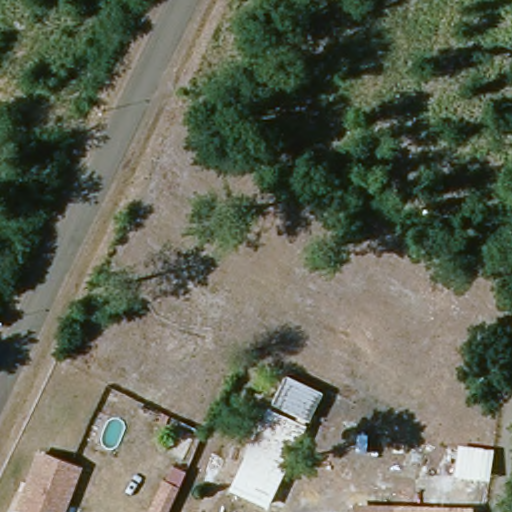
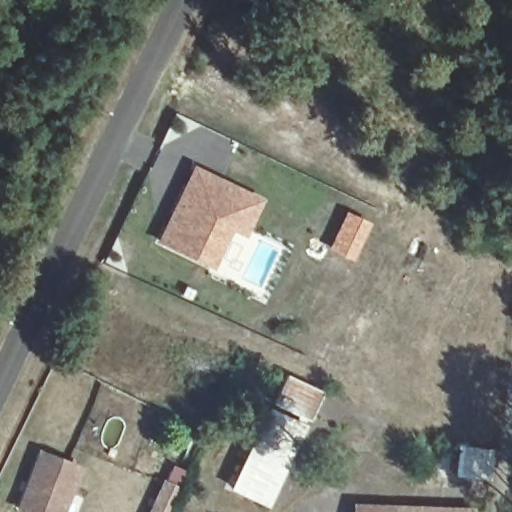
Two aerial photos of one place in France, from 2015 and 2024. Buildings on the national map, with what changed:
new [(157,241),(194,165),(263,199),(246,235),(231,228),(211,268),(157,241)]
unchanged [(320,398),(268,507),(232,489),(283,380),(320,398)]
unchanged [(26,512),(20,510),(25,493),(30,490),(31,485),(29,484),(40,453),(79,467),(63,512),(26,512)]
unchanged [(496,486),(462,485),(463,457),(500,460),(496,486)]
unchanged [(166,470),(180,476),(172,494),(166,506),(164,512),(148,512),(153,500),(166,470)]
unchanged [(363,512),(363,506),(451,512),(363,512)]

